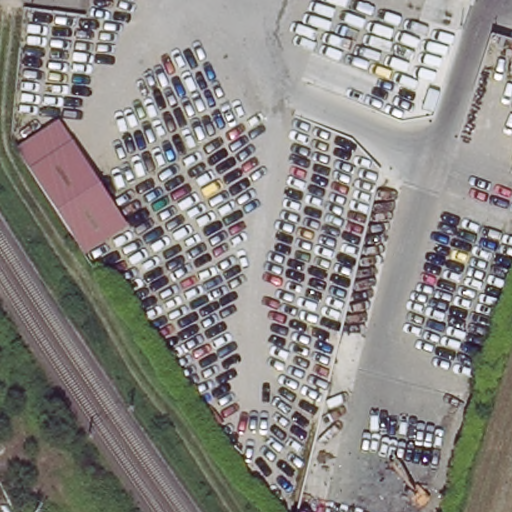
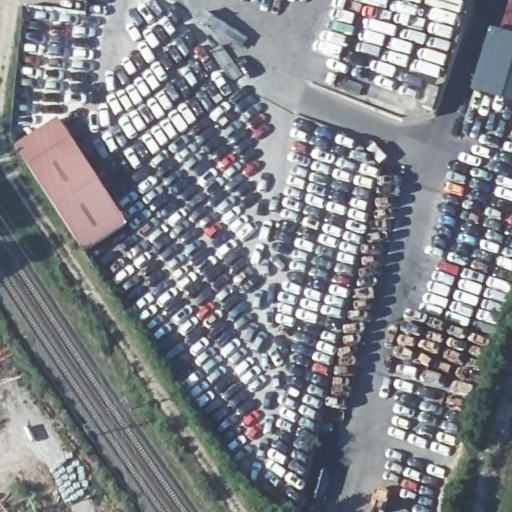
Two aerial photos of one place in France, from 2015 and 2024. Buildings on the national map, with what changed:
new [(509,3),(512,4),(512,36),(500,32),(509,3)]
new [(491,29),(500,32),(512,36),(512,104),(472,91),(491,29)]
unchanged [(18,148),(62,120),(131,223),(89,254),(18,148)]

